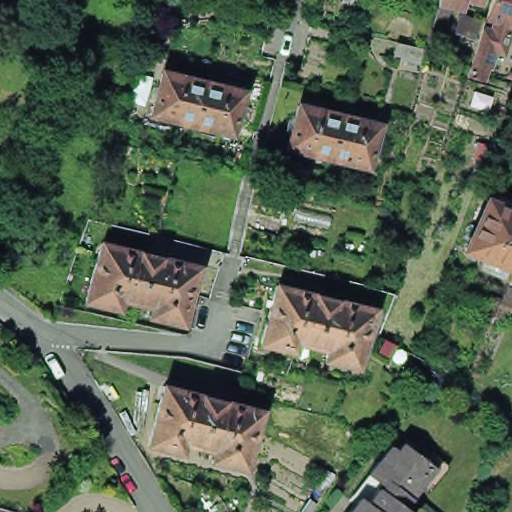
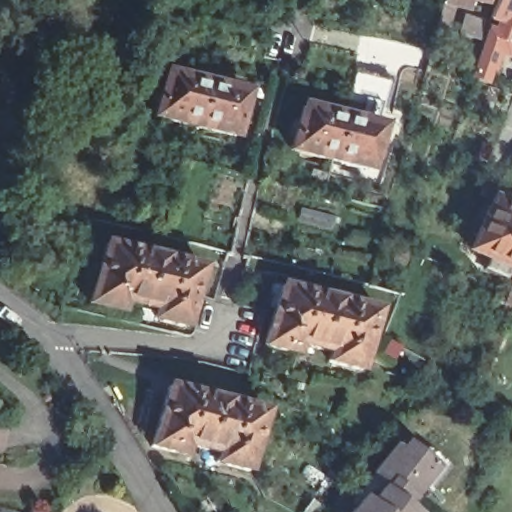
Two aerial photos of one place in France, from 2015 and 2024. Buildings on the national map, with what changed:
unchanged [(153,9),(155,0),(188,0),(185,16),(153,9)]
unchanged [(460,3),(447,0),(461,0),(460,3)]
unchanged [(483,3),(472,0),(484,0),(483,3)]
unchanged [(499,0),(512,0),(512,44),(510,48),(500,45),(497,55),(491,75),(477,71),(483,51),(491,25),(495,14),(499,0)]
unchanged [(465,30),(471,11),(489,17),(483,36),(465,30)]
unchanged [(14,31),(19,16),(46,26),(40,41),(14,31)]
unchanged [(397,59),(401,43),(426,49),(421,65),(397,59)]
unchanged [(156,121),(167,79),(172,80),(173,75),(190,79),(188,84),(206,88),(195,131),(156,121)]
unchanged [(206,88),(225,93),(226,88),(242,92),(241,97),(246,98),(236,141),(195,131),(206,88)]
unchanged [(290,154),(301,111),(306,113),(307,108),(324,112),(322,117),(341,121),(330,164),(290,154)]
unchanged [(341,121),(358,125),(360,120),(376,125),(375,129),(381,131),(371,174),(330,164),(341,121)]
unchanged [(486,206),(495,202),(507,207),(510,215),(509,219),(512,221),(512,276),(465,255),(486,206)]
unchanged [(186,330),(154,323),(156,313),(125,306),(122,316),(90,308),(104,249),(201,272),(186,330)]
unchanged [(376,310),(361,369),(329,361),(331,351),(300,344),(297,353),(265,345),(280,286),(376,310)]
unchanged [(262,412),(248,470),(215,462),(217,452),(187,444),(184,454),(152,445),(167,387),(262,412)]
unchanged [(408,501),(407,500),(401,509),(405,512),(347,512),(357,497),(365,503),(375,489),(378,491),(381,486),(366,475),(387,447),(393,451),(399,443),(432,469),(408,501)]

